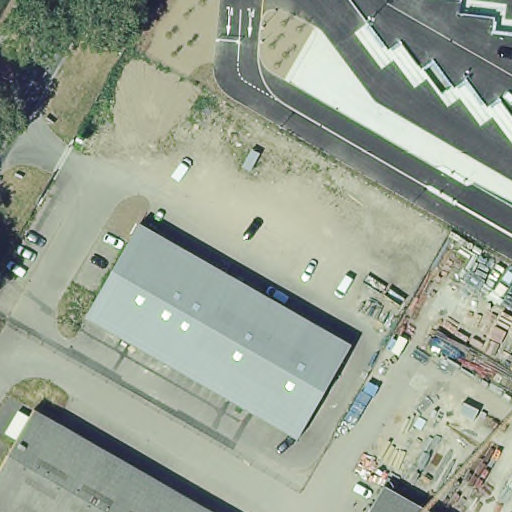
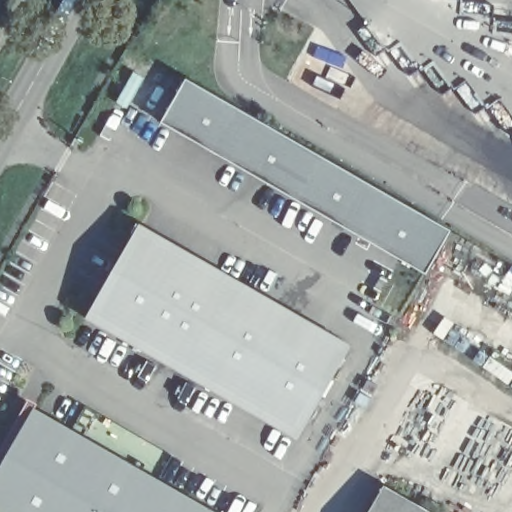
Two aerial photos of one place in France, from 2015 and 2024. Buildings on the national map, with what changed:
new [(426,275),(161,124),(186,80),(450,231),(426,275)]
unchanged [(128,226),(338,345),(284,439),(74,320),(128,226)]
unchanged [(0,512),(0,458),(26,411),(204,512),(0,512)]
unchanged [(411,512),(365,512),(376,492),(411,512)]

